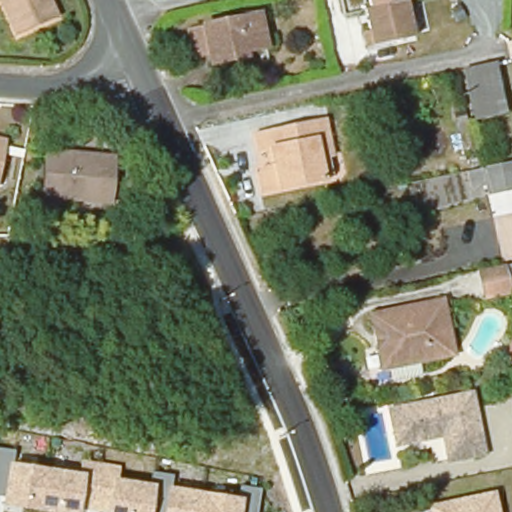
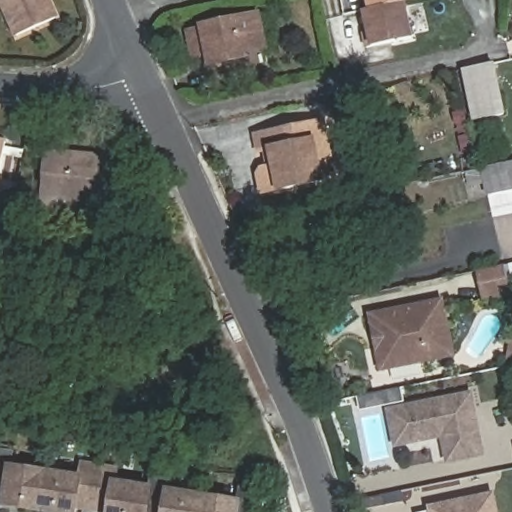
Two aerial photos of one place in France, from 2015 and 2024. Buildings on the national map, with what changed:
unchanged [(53,25),(17,41),(1,6),(0,7),(0,0),(42,0),(53,25)]
unchanged [(413,1),(407,2),(415,37),(370,48),(366,33),(372,31),(368,11),(371,10),(374,10),(372,0),(413,0),(413,1)]
unchanged [(239,57),(221,61),(219,53),(203,56),(197,28),(265,12),(272,43),(252,48),(253,54),(239,57)]
unchanged [(492,66),(504,117),(475,124),(462,72),(492,66)]
unchanged [(256,174),(263,172),(260,155),(252,156),(249,140),(318,125),(319,134),(323,134),(333,181),(320,185),(256,199),(252,180),(256,174)]
unchanged [(7,142),(0,178),(0,141),(7,142)]
unchanged [(63,193),(62,208),(43,206),(47,154),(48,146),(78,149),(118,152),(115,197),(84,195),(73,194),(63,193)]
unchanged [(512,189),(492,194),(490,186),(485,165),(512,160),(512,189)]
unchanged [(512,293),(498,296),(492,270),(512,265),(512,293)]
unchanged [(377,313),(448,298),(460,353),(388,368),(383,342),(381,333),(377,313)]
unchanged [(510,341),(512,341),(512,365),(507,365),(505,360),(510,341)]
unchanged [(493,457),(458,464),(452,438),(406,448),(400,414),(481,397),(493,457)]
unchanged [(358,401),(360,412),(347,415),(345,405),(358,401)]
unchanged [(102,512),(80,508),(79,512),(49,512),(2,505),(3,496),(0,496),(0,448),(14,450),(12,464),(81,473),(81,460),(120,465),(118,480),(151,483),(152,472),(172,475),(169,487),(237,497),(239,485),(262,488),(259,512),(102,512)]
unchanged [(437,512),(442,511),(442,506),(501,495),(505,512),(437,512)]

